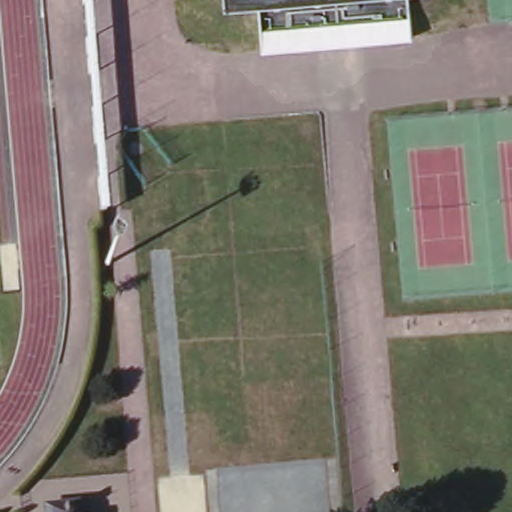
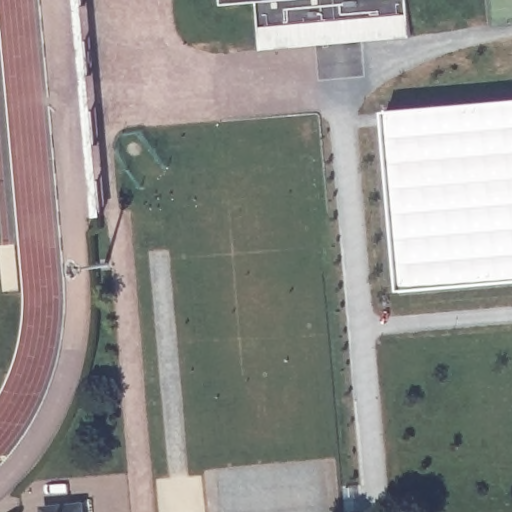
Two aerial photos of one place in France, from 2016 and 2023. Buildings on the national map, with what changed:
unchanged [(260,49),(256,0),(411,0),(415,37),(260,49)]
new [(512,279),(404,287),(390,110),(512,101),(512,279)]
unchanged [(41,509),(80,505),(80,512),(41,512),(41,509)]

